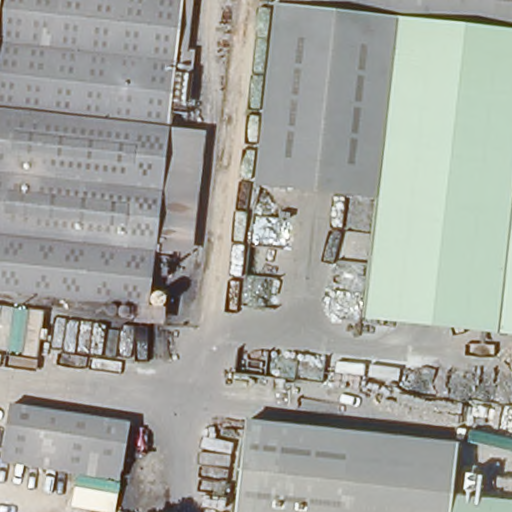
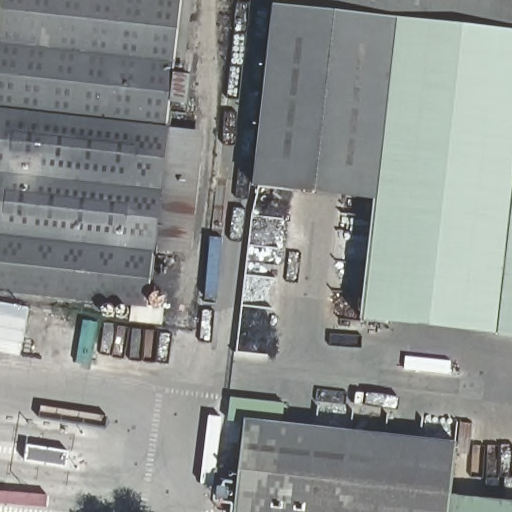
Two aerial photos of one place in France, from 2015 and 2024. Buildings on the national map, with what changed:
unchanged [(177,46),(195,48),(190,133),(209,134),(195,255),(154,254),(150,315),(0,300),(0,0),(183,0),(177,46)]
unchanged [(381,206),(257,194),(278,0),(512,0),(512,33),(399,21),(381,206)]
unchanged [(512,33),(512,338),(365,321),(381,206),(399,21),(512,33)]
demolished [(126,427),(118,479),(1,461),(9,408),(126,427)]
unchanged [(449,512),(233,512),(246,420),(458,444),(450,499),(449,512)]
unchanged [(512,506),(512,512),(449,512),(450,499),(512,506)]

